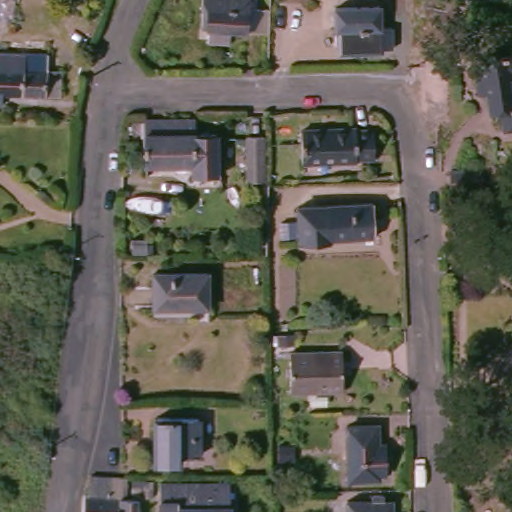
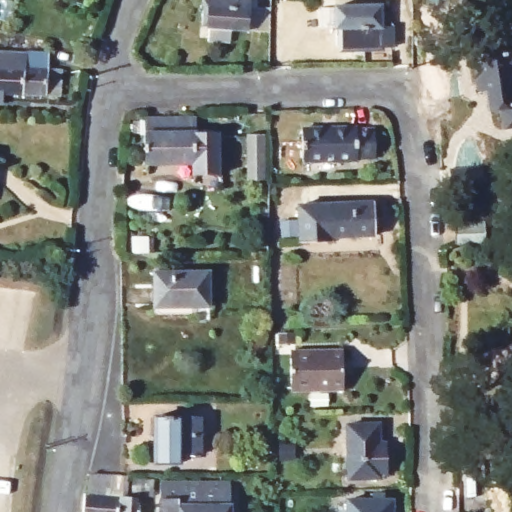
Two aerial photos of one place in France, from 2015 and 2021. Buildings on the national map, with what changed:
unchanged [(193,9),(189,8),(189,0),(244,0),(244,3),(240,3),(240,8),(256,10),(255,31),(192,28),(193,9)]
unchanged [(386,5),(386,6),(393,6),(393,15),(386,15),(386,21),(391,21),(390,29),(386,29),(386,48),(346,49),(346,29),(341,29),(340,6),(386,5)]
unchanged [(501,126),(498,103),(489,105),(486,78),(477,79),(473,52),(512,46),(512,125),(501,126)]
unchanged [(61,70),(68,70),(67,89),(54,88),(54,96),(10,95),(9,105),(0,104),(0,51),(62,54),(61,70)]
unchanged [(199,118),(199,133),(221,133),(222,175),(198,175),(198,164),(151,165),(151,134),(138,134),(138,121),(150,122),(151,119),(199,118)]
unchanged [(361,129),(361,131),(379,131),(380,159),(361,160),(361,161),(306,162),(307,130),(361,129)]
unchanged [(269,180),(252,180),(251,135),(269,135),(269,180)]
unchanged [(485,170),(486,187),(456,190),(454,172),(485,170)]
unchanged [(379,203),(380,235),(336,238),(336,241),(303,243),(302,207),(379,203)]
unchanged [(490,221),(491,243),(461,244),(461,222),(490,221)]
unchanged [(213,274),(214,308),(159,309),(159,274),(213,274)]
unchanged [(349,351),(349,391),(296,393),(296,352),(349,351)]
unchanged [(201,413),(201,450),(181,451),(181,460),(156,459),(156,413),(201,413)]
unchanged [(382,425),(384,445),(390,445),(391,475),(384,475),(384,478),(353,479),(351,426),(382,425)]
unchanged [(84,498),(89,494),(89,477),(127,478),(126,484),(129,486),(127,499),(139,501),(140,512),(83,512),(84,498)]
unchanged [(165,483),(204,483),(204,488),(208,488),(208,512),(164,512),(165,483)]
unchanged [(208,488),(213,488),(214,492),(234,492),(234,512),(208,512),(208,488)]
unchanged [(378,497),(379,490),(388,490),(388,497),(396,497),(396,512),(352,512),(352,497),(378,497)]

